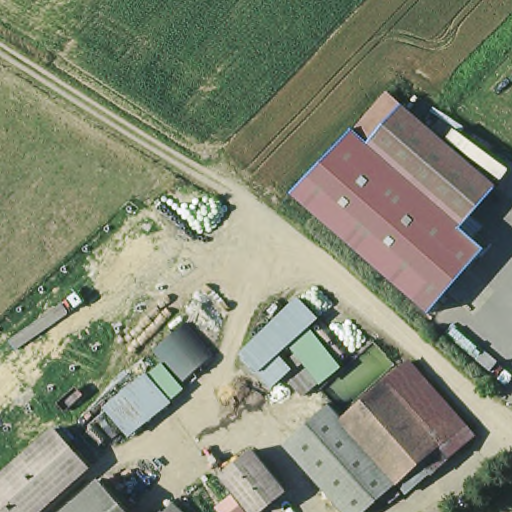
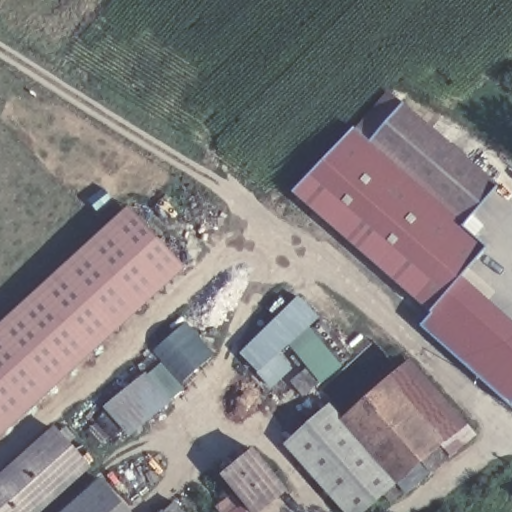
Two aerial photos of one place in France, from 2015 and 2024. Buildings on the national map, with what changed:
unchanged [(499,186),(464,227),(488,248),(432,315),(291,195),(391,93),(499,186)]
new [(0,325),(132,205),(185,267),(0,437),(0,325)]
new [(512,321),(512,402),(414,321),(424,308),(432,315),(444,301),(459,282),(462,278),(512,321)]
unchanged [(242,358),(297,301),(339,345),(348,340),(358,358),(322,390),(292,355),(261,380),(242,358)]
new [(167,398),(148,374),(165,359),(155,350),(187,322),(214,353),(182,382),(187,387),(170,401),(167,398)]
new [(429,473),(407,492),(401,486),(350,424),(345,417),(413,357),(478,433),(431,474),(429,473)]
unchanged [(148,374),(172,405),(129,439),(104,411),(148,374)]
demolished [(446,451),(401,486),(350,424),(394,389),(446,451)]
unchanged [(394,491),(401,499),(391,507),(384,499),(368,512),(339,512),(287,448),(337,408),(350,424),(401,486),(394,491)]
unchanged [(39,512),(0,512),(0,480),(52,436),(85,474),(39,512)]
unchanged [(265,512),(253,512),(226,479),(257,454),(287,494),(265,512)]
unchanged [(65,512),(95,484),(121,512),(65,512)]
unchanged [(176,512),(160,512),(169,504),(176,512)]

